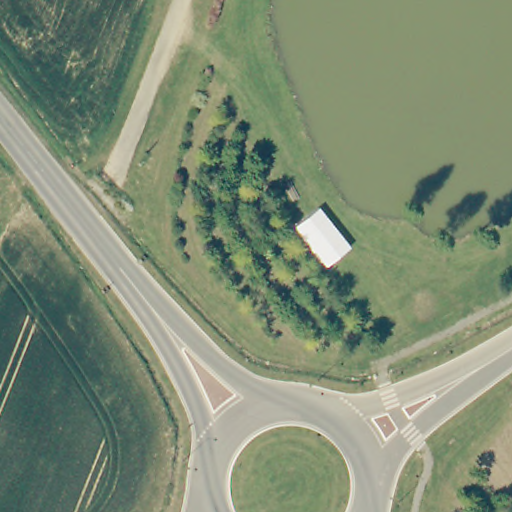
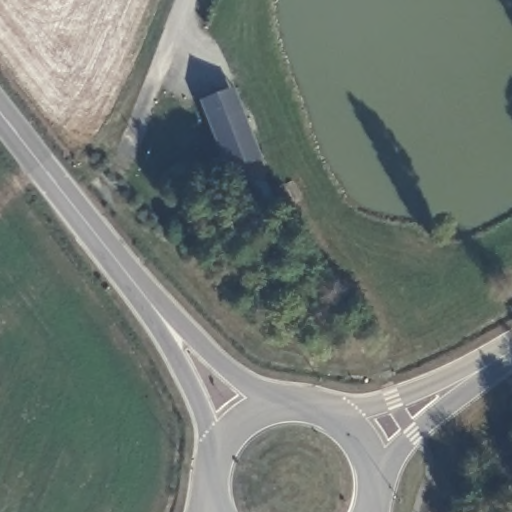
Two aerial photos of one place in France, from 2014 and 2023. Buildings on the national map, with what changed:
new [(262,160),(226,173),(199,100),(234,89),(262,160)]

